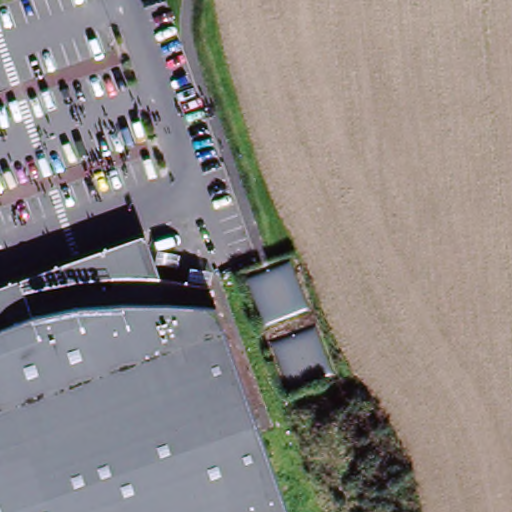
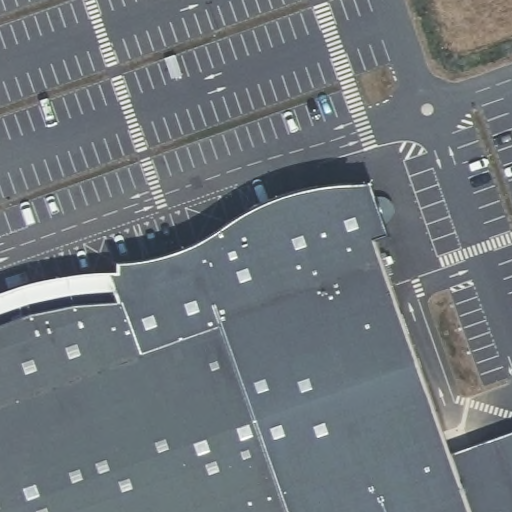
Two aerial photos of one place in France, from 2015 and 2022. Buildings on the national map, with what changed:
new [(373,241),(450,455),(512,434),(512,512),(293,512),(222,303),(213,282),(207,281),(195,246),(217,233),(253,211),(289,197),(348,187),(371,185),(390,236),(373,241)]
unchanged [(15,281),(143,236),(156,273),(77,276),(21,292),(23,301),(0,310),(0,287),(15,281)]
unchanged [(23,301),(21,292),(77,276),(156,273),(213,282),(222,303),(293,512),(0,512),(0,310),(23,301)]

